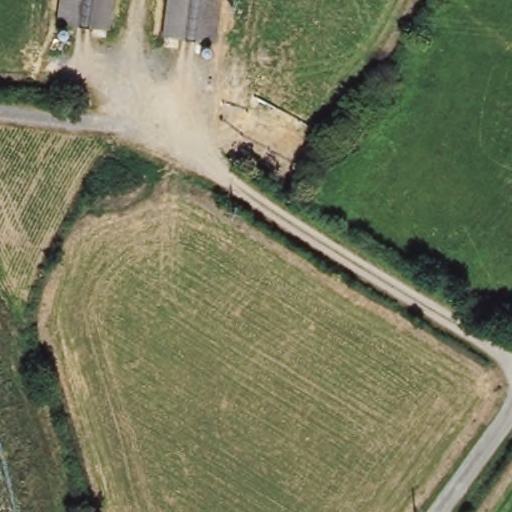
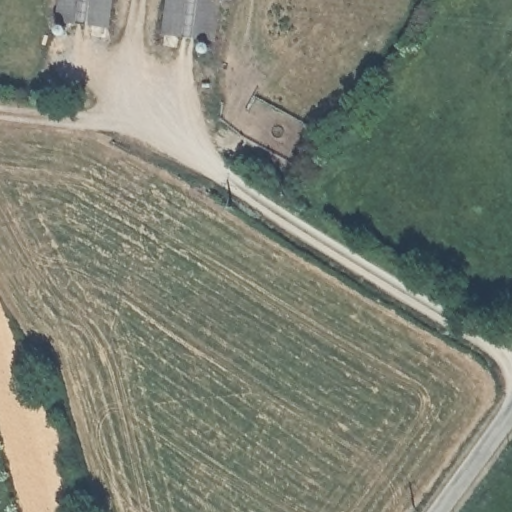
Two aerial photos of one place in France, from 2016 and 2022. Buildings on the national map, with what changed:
unchanged [(115,0),(111,28),(58,24),(61,0),(115,0)]
unchanged [(224,0),(219,43),(164,37),(169,0),(224,0)]

